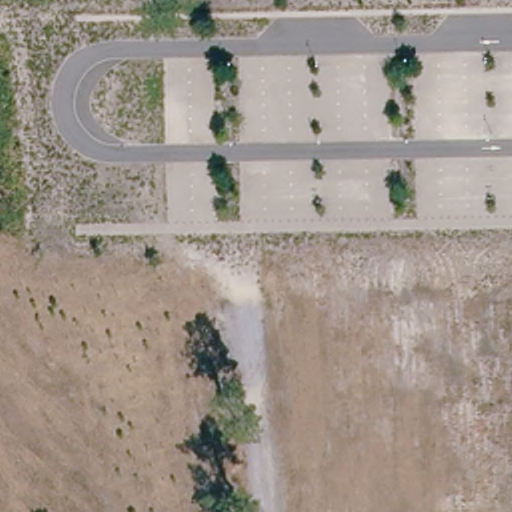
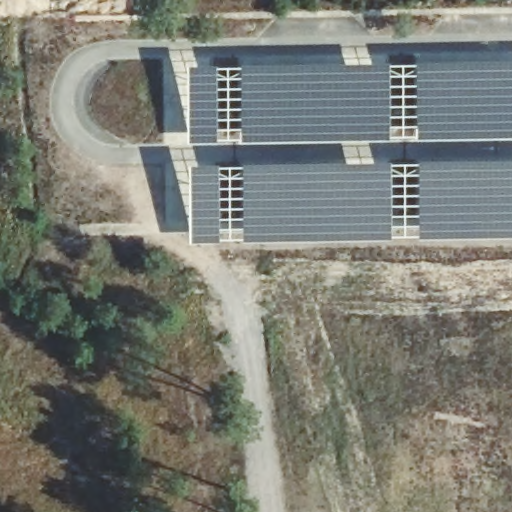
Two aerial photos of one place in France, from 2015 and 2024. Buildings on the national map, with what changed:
new [(182,59),(225,61),(274,57),(340,59),(441,54),(441,52),(456,52),(499,55),(512,54),(512,141),(368,142),(217,145),(190,147),(185,149),(182,97),(182,59)]
new [(512,141),(512,155),(402,160),(369,158),(368,142),(512,141)]
new [(183,157),(190,157),(190,147),(217,145),(368,142),(369,158),(402,160),(512,155),(512,237),(484,237),(375,240),(257,242),(226,241),(187,243),(182,196),(183,157)]

